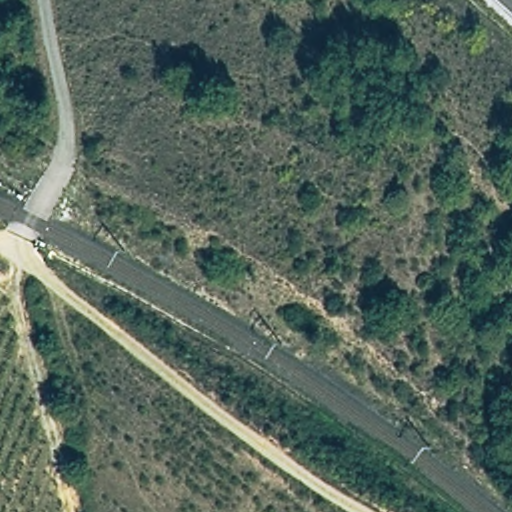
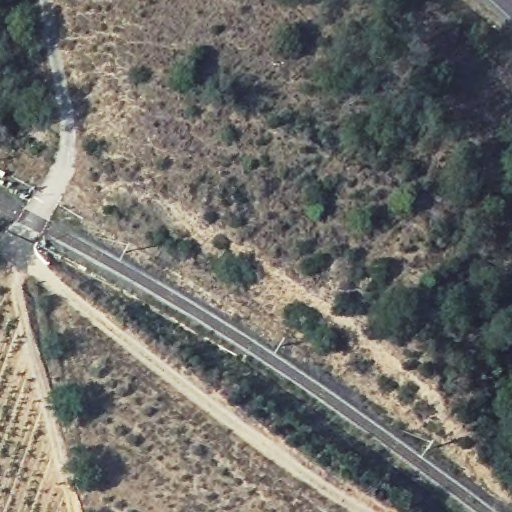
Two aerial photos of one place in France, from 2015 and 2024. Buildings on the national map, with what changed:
[]

